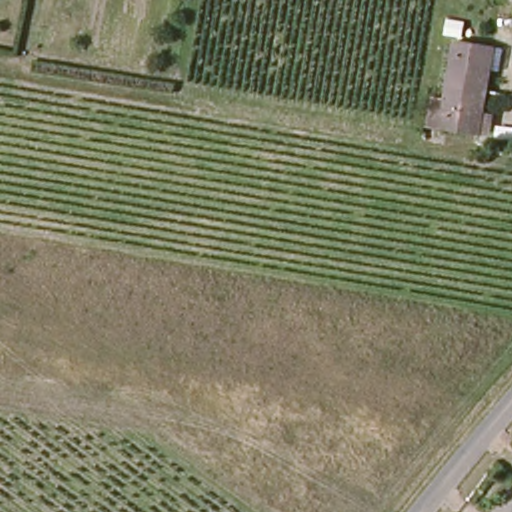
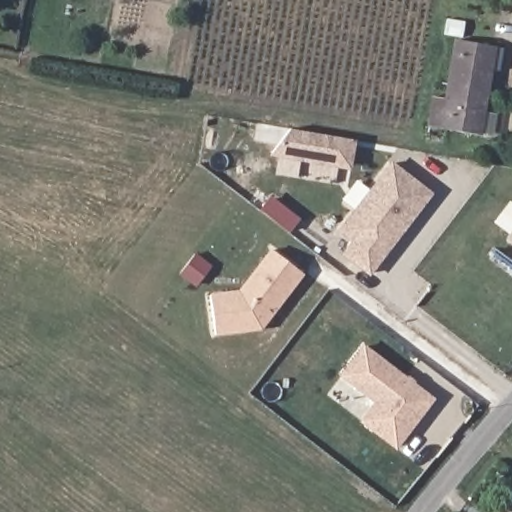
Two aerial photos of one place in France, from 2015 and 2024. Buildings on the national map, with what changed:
unchanged [(442,134),(458,32),(501,40),(484,140),(442,134)]
new [(356,140),(353,166),(271,153),(290,128),(356,140)]
new [(393,161),(436,195),(372,276),(342,255),(351,242),(338,230),(393,161)]
new [(512,235),(512,244),(508,240),(512,235)]
new [(235,293),(265,248),(301,273),(261,326),(214,334),(210,296),(235,293)]
new [(436,398),(397,448),(362,423),(376,404),(341,377),(365,344),(436,398)]

